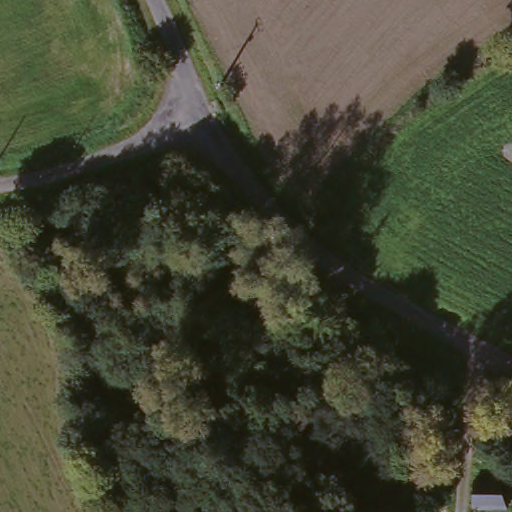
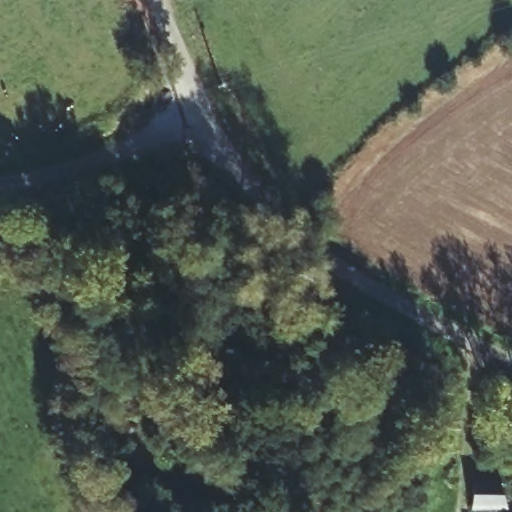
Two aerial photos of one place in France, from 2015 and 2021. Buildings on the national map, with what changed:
unchanged [(495,487),(496,512),(462,512),(461,488),(495,487)]

